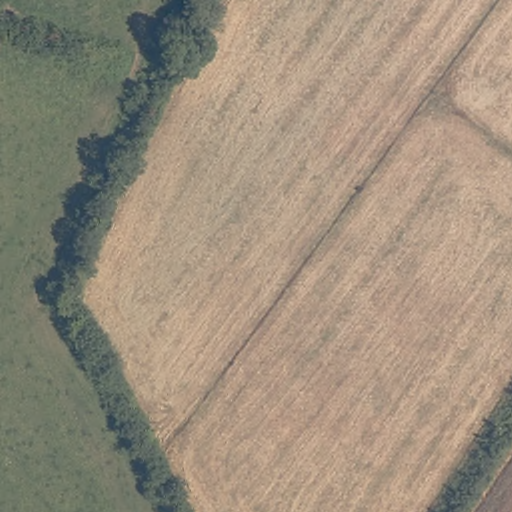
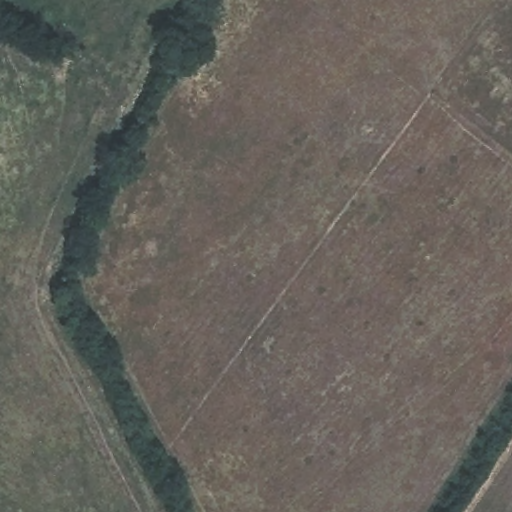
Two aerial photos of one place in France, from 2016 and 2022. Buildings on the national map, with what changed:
[]

